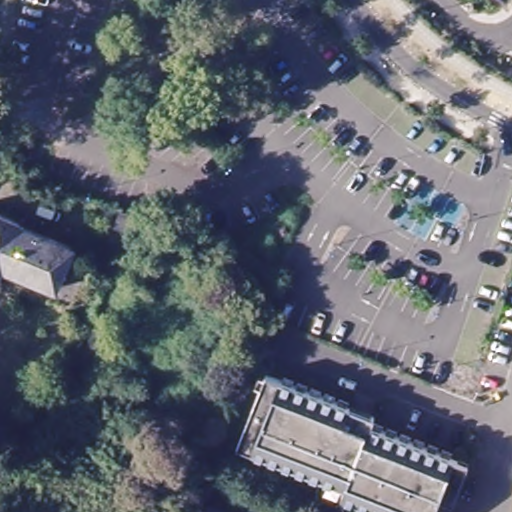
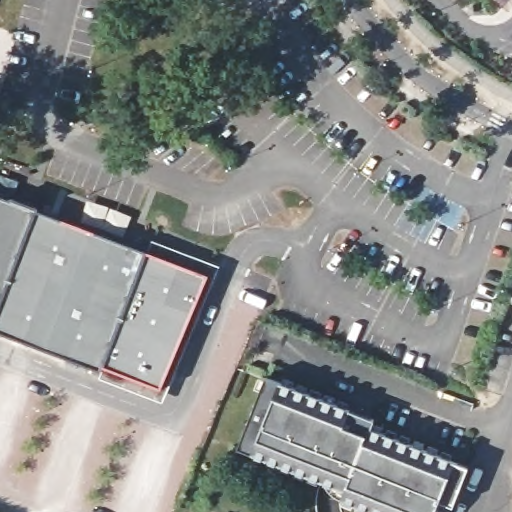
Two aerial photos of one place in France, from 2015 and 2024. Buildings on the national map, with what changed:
unchanged [(503,2),(500,0),(505,0),(503,2)]
new [(169,261),(173,250),(218,268),(163,402),(97,379),(102,368),(0,332),(0,198),(169,261)]
unchanged [(135,221),(128,237),(115,231),(122,216),(135,221)]
demolished [(4,223),(6,219),(33,231),(32,236),(84,258),(68,298),(16,276),(10,287),(0,283),(0,221),(4,223)]
unchanged [(255,371),(260,357),(269,361),(264,375),(255,371)]
unchanged [(261,382),(346,413),(371,422),(367,432),(455,466),(466,470),(462,478),(453,503),(450,512),(436,512),(434,512),(367,512),(338,502),(318,484),(234,453),(261,382)]

